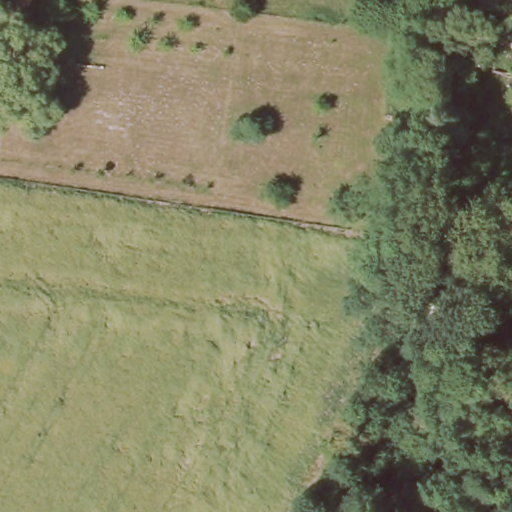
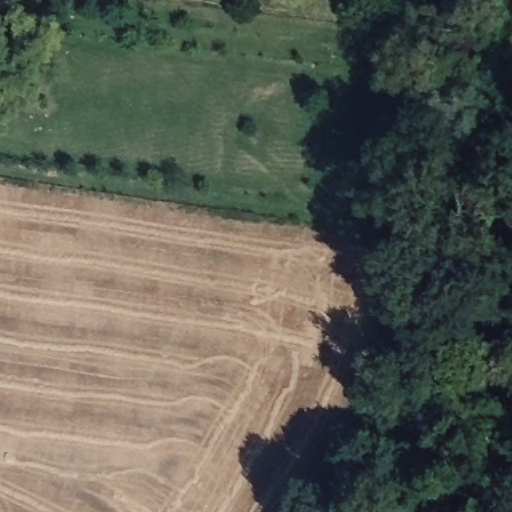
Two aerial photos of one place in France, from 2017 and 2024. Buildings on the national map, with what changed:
[]

